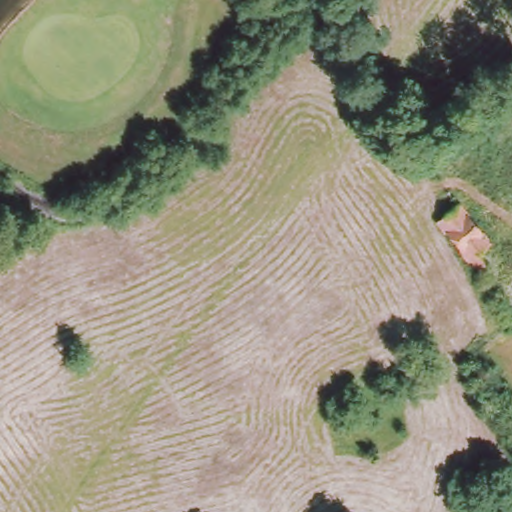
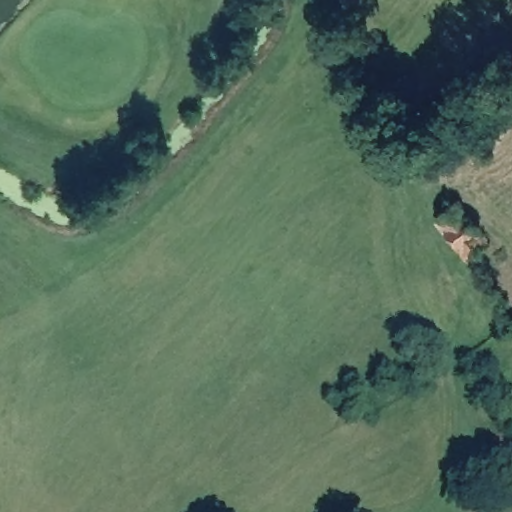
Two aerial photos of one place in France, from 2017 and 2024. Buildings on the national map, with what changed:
unchanged [(435,215),(455,199),(486,239),(475,248),(487,264),(478,271),(435,215)]

